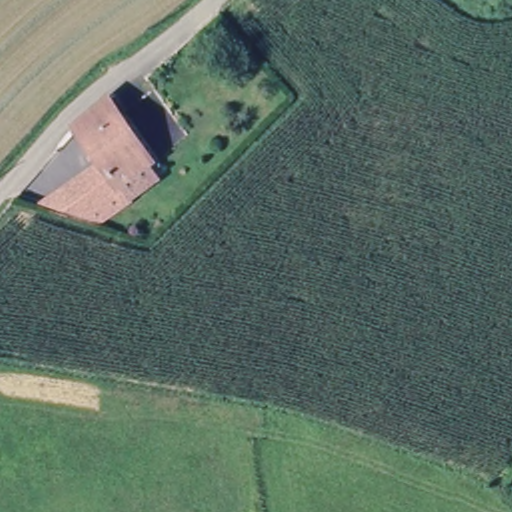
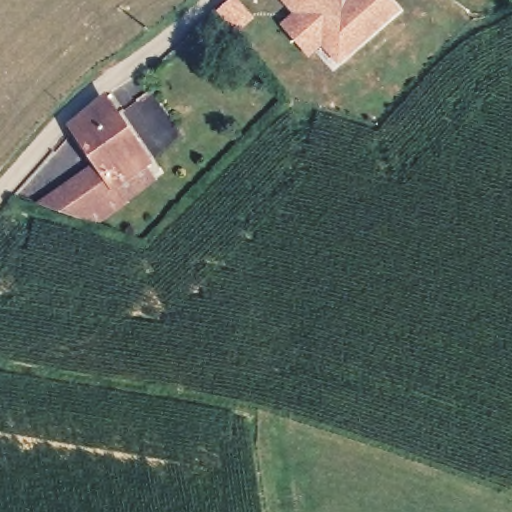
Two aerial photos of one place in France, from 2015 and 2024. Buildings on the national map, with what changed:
new [(337,65),(321,46),(309,57),(281,25),(293,15),(281,0),(342,0),(343,2),(346,0),(392,0),(401,10),(337,65)]
unchanged [(63,187),(97,165),(84,150),(72,127),(110,99),(148,159),(144,162),(154,176),(127,197),(116,182),(113,185),(119,192),(82,216),(36,205),(63,187)]

